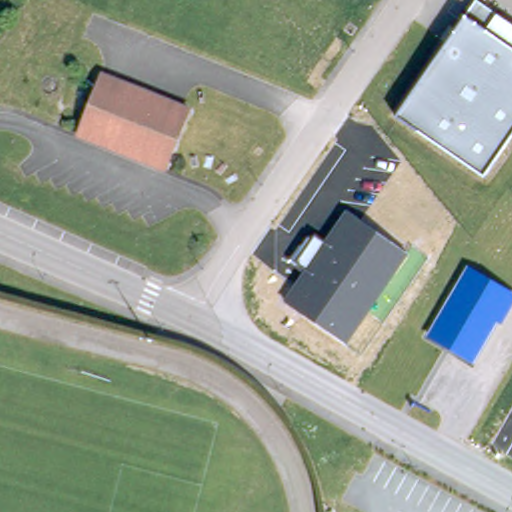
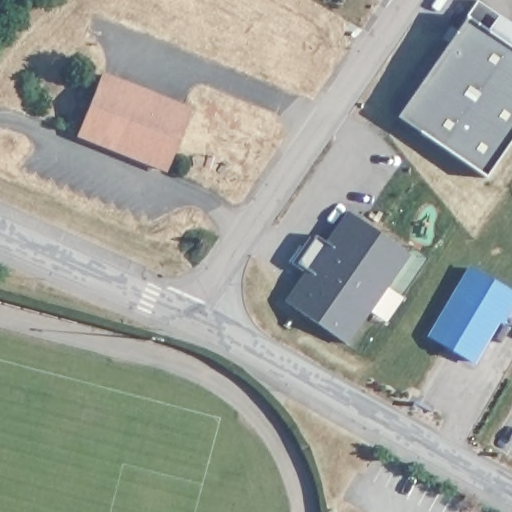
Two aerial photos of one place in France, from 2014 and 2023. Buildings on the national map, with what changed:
unchanged [(475,0),(483,0),(500,12),(490,29),(512,44),(512,136),(485,173),(397,112),(475,0)]
unchanged [(140,157),(81,133),(105,74),(140,88),(193,110),(172,162),(170,167),(146,159),(140,157)]
unchanged [(411,253),(347,343),(285,300),(305,270),(295,263),(315,235),(326,242),(347,208),(411,253)]
unchanged [(501,311),(489,332),(488,333),(489,334),(472,362),(430,336),(448,302),(457,288),(468,269),(512,295),(512,303),(506,314),(501,311)]

